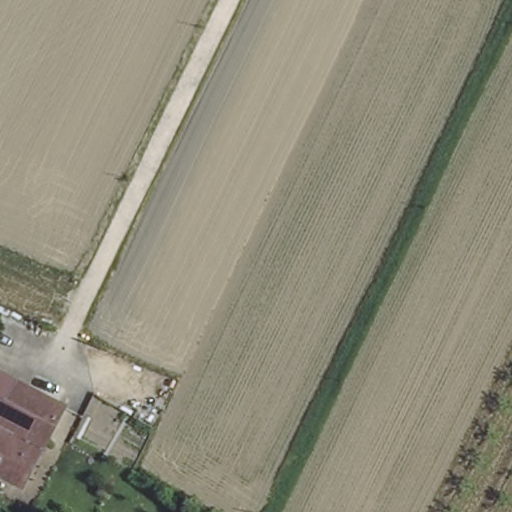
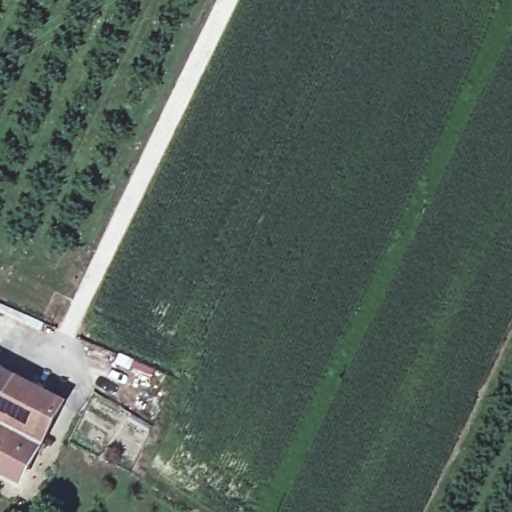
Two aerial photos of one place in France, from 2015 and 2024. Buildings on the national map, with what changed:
unchanged [(25,483),(5,474),(0,487),(0,372),(64,405),(25,483)]

